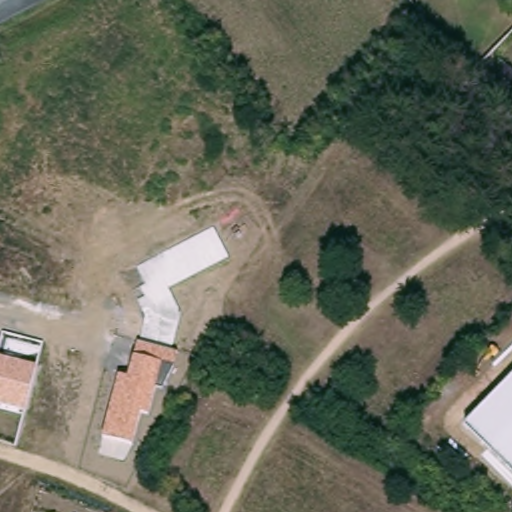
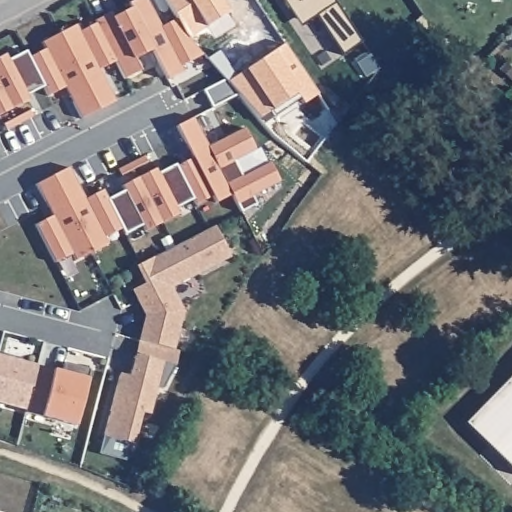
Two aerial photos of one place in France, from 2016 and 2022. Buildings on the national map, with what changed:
new [(175,15),(201,51),(179,62),(181,68),(165,77),(150,46),(129,4),(128,5),(125,0),(146,0),(159,23),(175,15)]
new [(107,9),(110,14),(128,5),(129,4),(150,46),(132,55),(138,67),(122,75),(122,76),(114,58),(94,19),(93,20),(92,17),(107,9)]
new [(74,21),(77,28),(93,20),(94,19),(114,58),(97,66),(114,98),(96,107),(56,30),(74,21)]
new [(42,46),(39,39),(56,30),(96,107),(79,116),(62,84),(45,93),(40,83),(26,54),(42,46)]
new [(6,56),(24,48),(26,54),(40,83),(25,91),(27,96),(10,105),(0,87),(0,53),(4,51),(6,56)]
new [(221,77),(230,94),(205,107),(195,90),(221,77)]
new [(0,110),(0,87),(10,105),(0,110)]
new [(50,213),(32,182),(65,165),(82,196),(101,187),(105,196),(121,188),(119,183),(153,165),(156,170),(174,161),(175,163),(191,154),(175,123),(191,114),(206,143),(241,125),(252,147),(231,158),(239,173),(267,159),(277,179),(250,193),(254,201),(239,209),(230,191),(214,199),(210,192),(193,202),(190,196),(174,205),(177,210),(143,228),(140,222),(122,232),(119,226),(102,235),(105,241),(73,258),(70,251),(52,260),(32,222),(50,213)]
new [(230,257),(170,287),(182,310),(171,350),(138,340),(144,316),(132,291),(143,285),(135,268),(214,228),(230,257)]
unchanged [(119,373),(128,376),(134,355),(138,340),(179,352),(174,365),(163,389),(155,387),(148,414),(141,412),(134,445),(104,436),(119,373)]
unchanged [(25,412),(0,405),(0,357),(36,366),(25,412)]
new [(53,370),(86,379),(75,426),(41,418),(25,412),(36,366),(53,370)]
unchanged [(512,376),(512,469),(466,423),(512,376)]

